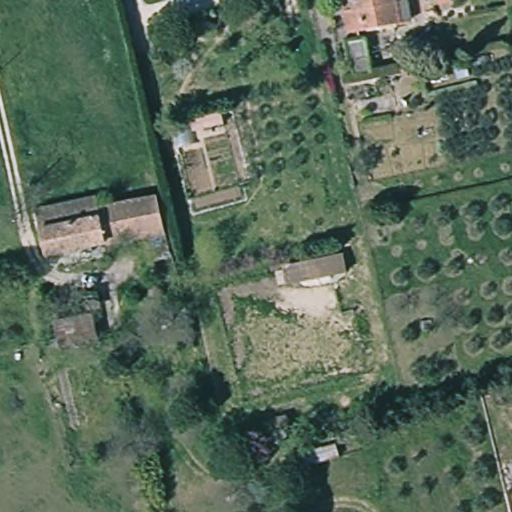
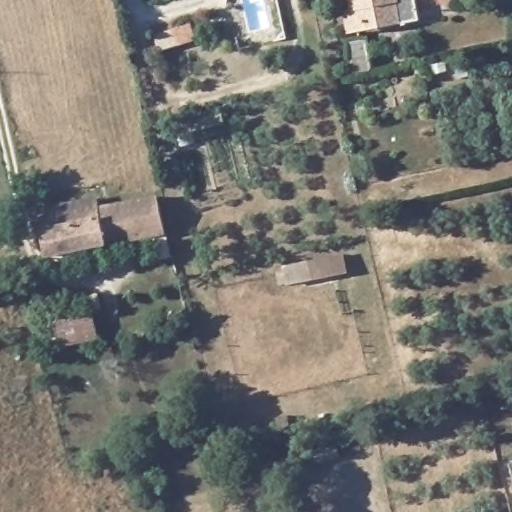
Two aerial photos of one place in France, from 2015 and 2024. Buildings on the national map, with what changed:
unchanged [(405,21),(353,29),(347,0),(402,0),(405,21)]
unchanged [(370,67),(354,71),(348,40),(364,38),(370,67)]
unchanged [(94,197),(97,207),(152,195),(167,257),(157,259),(151,234),(48,256),(36,210),(94,197)]
unchanged [(284,287),(281,264),(344,253),(348,275),(284,287)]
unchanged [(85,335),(64,341),(58,317),(80,312),(85,335)]
unchanged [(337,457),(300,469),(295,453),(333,444),(337,457)]

